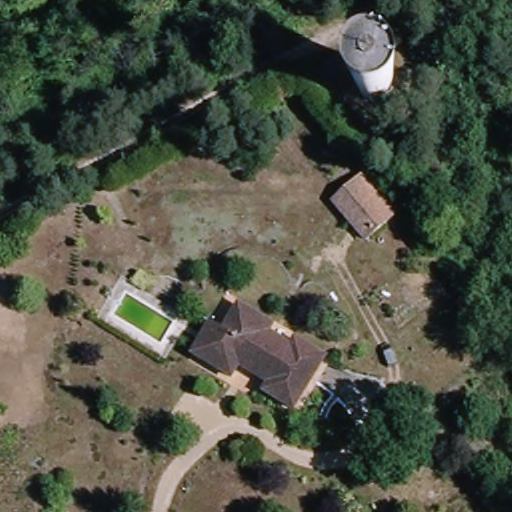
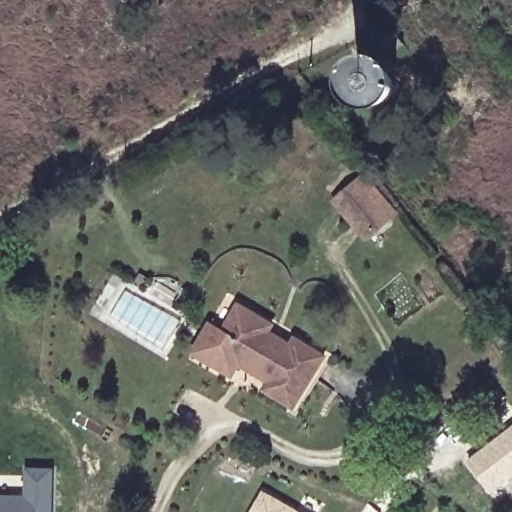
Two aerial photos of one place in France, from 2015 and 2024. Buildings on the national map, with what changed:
unchanged [(400,72),(387,56),(400,47),(413,62),(400,72)]
unchanged [(345,201),(368,182),(375,175),(405,214),(399,219),(376,239),(345,201)]
unchanged [(500,326),(483,305),(496,296),(512,316),(500,326)]
unchanged [(283,326),(279,332),(303,345),(307,340),(336,358),(303,410),(272,392),(279,383),(268,377),(268,375),(270,372),(249,359),(240,374),(214,360),(202,352),(219,323),(231,331),(247,305),(283,326)]
new [(512,476),(490,492),(468,462),(512,429),(512,476)]
new [(22,493),(23,467),(54,467),(54,512),(0,512),(0,493),(22,493)]
new [(300,512),(249,512),(262,490),(300,512)]

